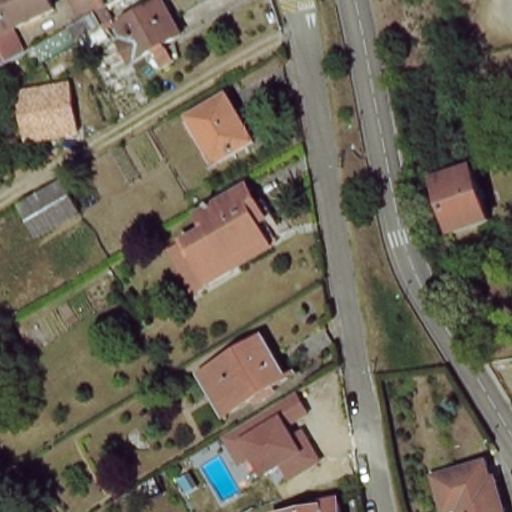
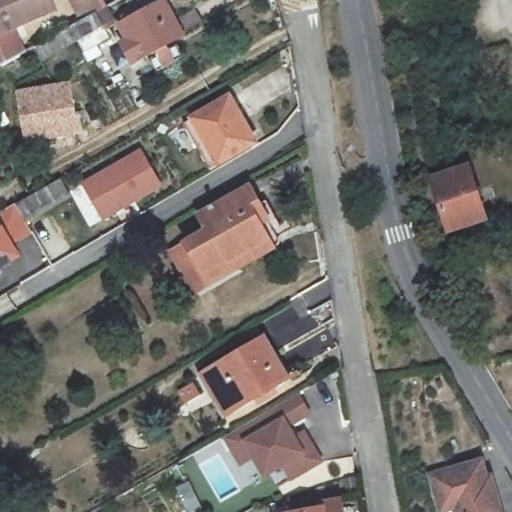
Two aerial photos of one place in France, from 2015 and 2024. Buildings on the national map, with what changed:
unchanged [(0,33),(0,0),(56,0),(58,5),(0,33)]
unchanged [(115,35),(89,49),(82,36),(45,56),(38,45),(46,41),(88,18),(78,0),(110,0),(112,4),(118,15),(108,21),(115,35)]
unchanged [(170,0),(187,32),(137,59),(127,40),(134,36),(126,21),(163,0),(170,0)]
unchanged [(12,60),(0,66),(0,39),(12,60)]
unchanged [(70,86),(78,134),(27,142),(20,95),(70,86)]
unchanged [(259,139),(215,166),(187,119),(233,94),(259,139)]
new [(141,151),(163,188),(102,222),(81,185),(141,151)]
unchanged [(469,170),(484,223),(447,233),(432,181),(469,170)]
new [(60,181),(72,199),(25,225),(32,237),(15,247),(22,258),(0,271),(0,215),(60,181)]
demolished [(17,208),(60,183),(69,199),(26,224),(17,208)]
unchanged [(180,261),(195,252),(203,247),(218,239),(210,224),(260,196),(286,245),(237,273),(241,279),(226,288),(218,292),(204,300),(180,261)]
unchanged [(229,421),(203,376),(268,338),(296,383),(229,421)]
unchanged [(297,395),(309,415),(287,427),(292,438),(301,432),(320,463),(291,480),(281,466),(264,477),(253,457),(239,465),(224,437),(297,395)]
unchanged [(500,490),(504,489),(510,512),(449,512),(446,504),(441,486),(496,472),(500,490)]
unchanged [(346,497),(349,512),(310,512),(327,509),(326,500),(346,497)]

